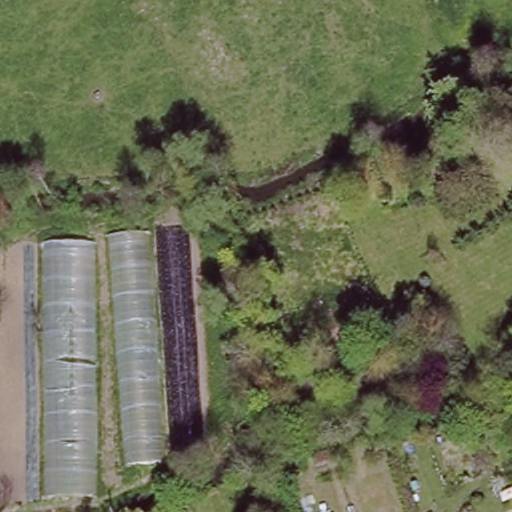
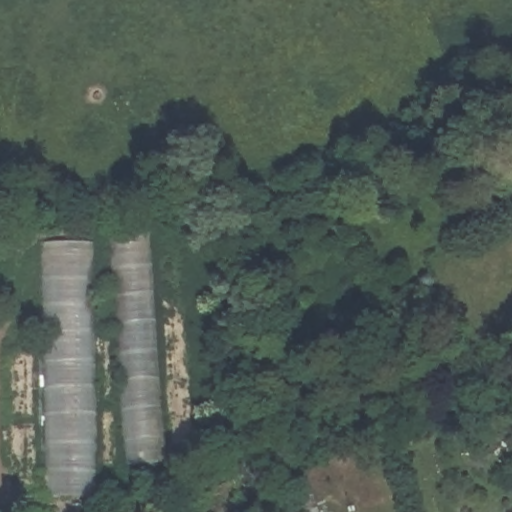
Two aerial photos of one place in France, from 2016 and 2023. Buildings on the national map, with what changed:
unchanged [(41,244),(150,234),(167,462),(94,467),(93,497),(40,498),(41,244)]
unchanged [(338,457),(316,463),(313,452),(335,446),(338,457)]

